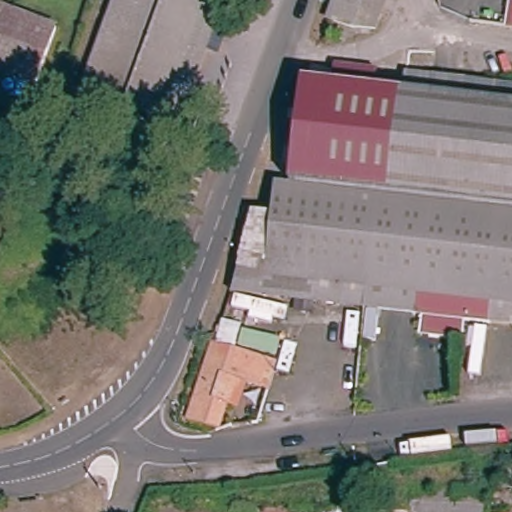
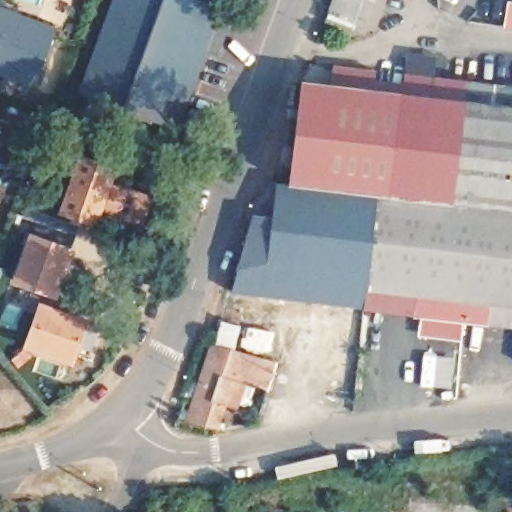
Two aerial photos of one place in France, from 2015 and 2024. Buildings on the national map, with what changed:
unchanged [(82,94),(116,0),(194,0),(220,10),(177,129),(82,94)]
unchanged [(335,0),(386,0),(373,34),(350,32),(326,24),(335,0)]
new [(512,1),(512,31),(502,30),(507,0),(512,1)]
unchanged [(0,73),(0,9),(56,30),(35,86),(0,73)]
unchanged [(376,66),(373,97),(403,101),(405,84),(512,96),(512,309),(492,306),(489,330),(469,327),(467,344),(419,340),(421,320),(363,314),(365,293),(343,290),(340,311),(230,295),(251,215),(271,217),(275,190),(287,191),(300,89),(308,90),(310,72),(310,71),(334,73),(335,62),(376,66)]
new [(81,157),(114,170),(108,185),(149,199),(139,225),(99,210),(94,225),(61,212),(81,157)]
new [(73,251),(56,296),(16,281),(33,236),(73,251)]
new [(86,323),(71,364),(26,347),(41,307),(86,323)]
unchanged [(271,371),(263,398),(260,396),(252,421),(225,412),(226,407),(221,406),(212,435),(184,426),(208,350),(271,371)]

